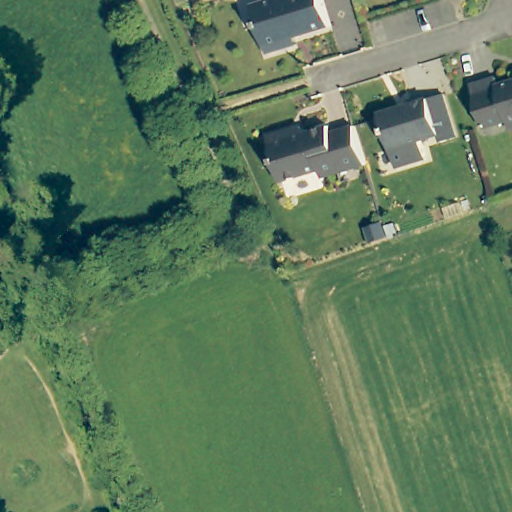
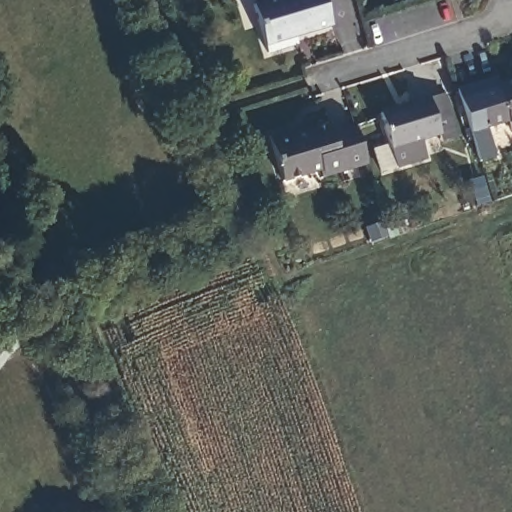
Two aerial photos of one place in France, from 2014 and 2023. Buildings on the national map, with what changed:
unchanged [(335,20),(292,34),(294,41),(271,48),(257,0),(329,0),(335,20)]
unchanged [(510,123),(487,130),(474,86),(498,79),(500,86),(512,82),(512,128),(510,123)]
unchanged [(446,137),(430,142),(428,134),(410,140),(416,158),(386,167),(370,113),(433,94),(446,137)]
unchanged [(360,142),(366,164),(323,177),(321,170),(282,182),(268,137),(291,130),(294,137),(330,126),(332,133),(355,126),(360,142)]
unchanged [(385,226),(387,232),(388,240),(375,246),(375,245),(369,231),(385,226)]

